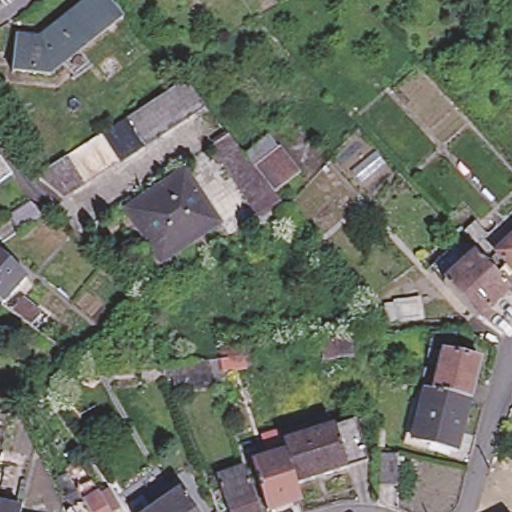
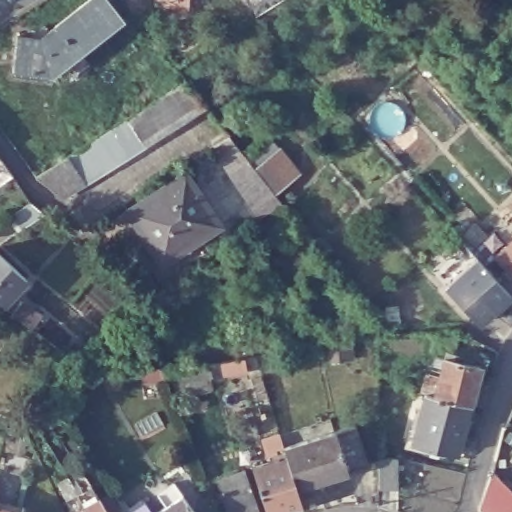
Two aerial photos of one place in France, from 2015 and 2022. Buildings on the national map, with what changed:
unchanged [(68,65),(62,58),(48,69),(10,65),(14,30),(37,33),(79,0),(110,0),(119,12),(78,46),(83,53),(68,65)]
unchanged [(114,118),(129,109),(143,100),(158,90),(173,81),(186,72),(206,97),(189,108),(175,117),(160,127),(146,136),(131,145),(116,155),(102,164),(84,175),(83,172),(61,186),(37,167),(68,148),(84,137),(99,128),(114,118)]
unchanged [(211,140),(228,128),(251,157),(276,136),(299,166),(275,188),(278,196),(258,212),(211,140)]
unchanged [(0,171),(0,172),(0,153),(9,165),(0,171)]
unchanged [(167,265),(163,260),(159,255),(124,203),(183,164),(214,212),(216,215),(198,228),(203,234),(206,239),(176,259),(167,265)]
unchanged [(45,215),(18,233),(9,218),(31,204),(45,215)]
unchanged [(484,227),(471,237),(459,223),(471,213),(484,227)]
unchanged [(486,252),(512,228),(512,267),(504,257),(496,264),(486,252)]
unchanged [(506,283),(474,313),(441,276),(472,247),(506,283)]
unchanged [(28,280),(4,305),(0,302),(0,255),(28,280)]
unchanged [(378,312),(384,311),(383,306),(393,305),(393,302),(422,300),(424,325),(379,328),(378,312)]
unchanged [(14,312),(23,301),(43,317),(38,323),(43,327),(39,331),(34,327),(14,312)]
unchanged [(354,358),(322,363),(321,344),(352,340),(354,358)]
unchanged [(423,385),(419,384),(424,365),(428,366),(436,368),(442,347),(449,349),(451,343),(472,348),(471,354),(478,356),(467,396),(454,447),(409,435),(423,385)]
unchanged [(209,364),(213,374),(167,377),(168,379),(144,380),(143,369),(163,368),(209,364)]
unchanged [(280,460),(278,454),(269,457),(264,440),(281,435),(334,419),(337,431),(359,424),(371,465),(349,472),(297,488),(302,505),(280,512),(267,512),(254,467),(280,460)]
unchanged [(400,490),(381,491),(381,461),(400,461),(400,490)]
unchanged [(75,477),(71,471),(79,466),(80,465),(84,471),(83,471),(75,477)]
new [(512,512),(496,512),(496,511),(495,512),(487,512),(479,504),(492,468),(512,488),(512,512)]
unchanged [(253,490),(261,512),(229,512),(226,501),(253,490)]
unchanged [(196,512),(160,512),(184,495),(196,512)]
unchanged [(100,498),(108,512),(75,512),(86,506),(100,498)]
demolished [(492,507),(500,501),(504,505),(509,512),(495,512),(496,511),(492,507)]
unchanged [(144,512),(128,512),(139,505),(144,512)]
unchanged [(13,512),(0,512),(0,509),(13,512)]
unchanged [(496,512),(495,512),(496,511),(496,512)]

